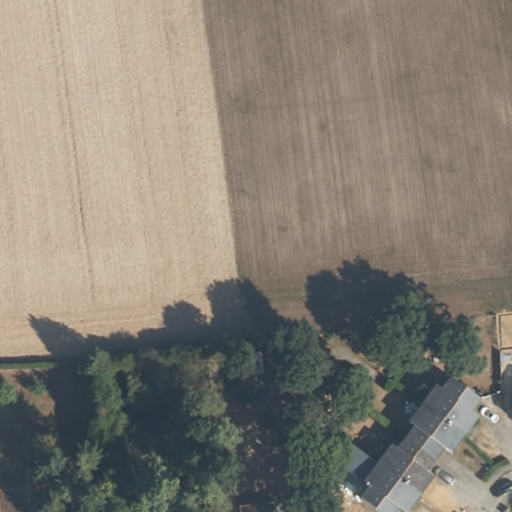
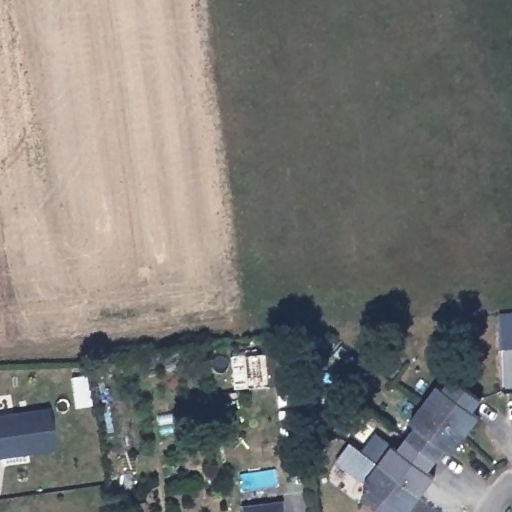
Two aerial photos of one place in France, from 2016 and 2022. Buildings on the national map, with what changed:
new [(512,346),(499,346),(498,311),(512,310),(512,346)]
unchanged [(266,385),(263,354),(285,352),(287,383),(266,385)]
unchanged [(442,386),(448,390),(455,380),(480,396),(473,410),(480,415),(468,431),(454,420),(430,401),(442,386)]
unchanged [(454,420),(468,431),(453,451),(445,447),(440,453),(415,434),(419,428),(414,422),(430,401),(454,420)]
new [(0,459),(0,416),(49,410),(54,451),(28,455),(21,456),(0,459)]
unchanged [(396,448),(400,452),(415,434),(440,453),(428,471),(435,478),(427,489),(388,460),(396,448)]
unchanged [(427,489),(409,512),(401,509),(399,512),(383,512),(368,500),(374,490),(369,485),(388,460),(427,489)]
unchanged [(111,504),(133,502),(135,512),(113,512),(111,504)]
unchanged [(245,508),(282,504),(283,512),(245,512),(245,508)]

